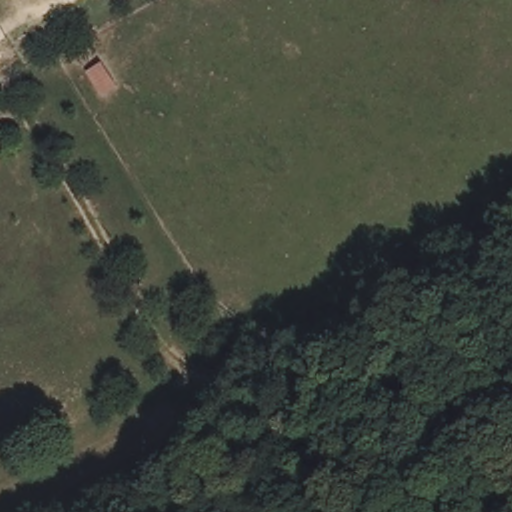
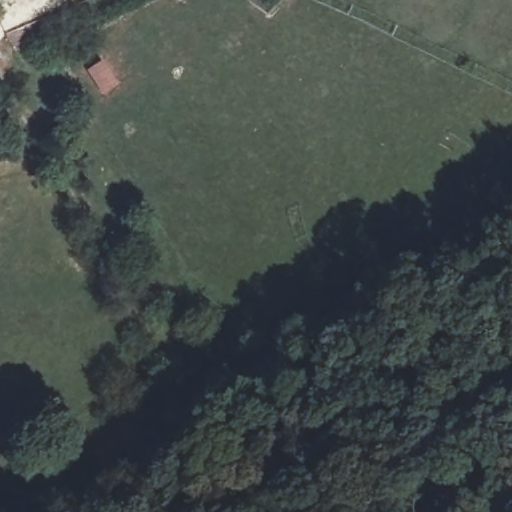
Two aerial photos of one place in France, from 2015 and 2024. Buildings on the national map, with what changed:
[]

